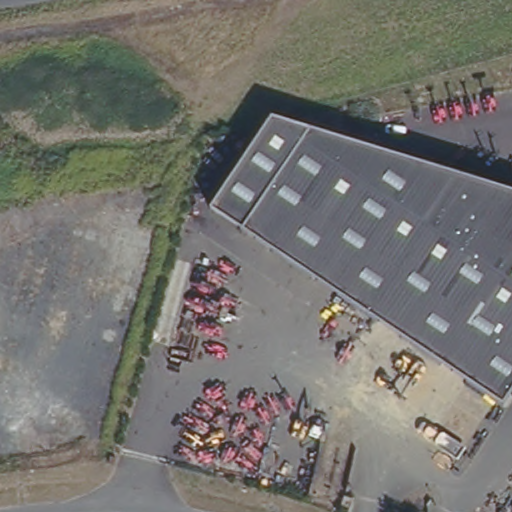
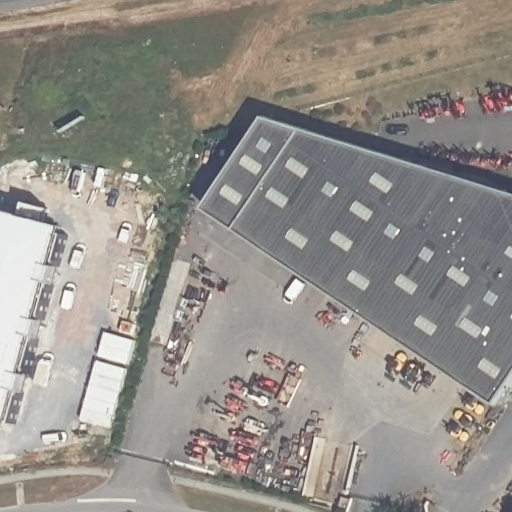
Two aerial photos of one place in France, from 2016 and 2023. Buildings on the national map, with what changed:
unchanged [(512,194),(512,393),(500,410),(208,215),(269,119),(512,194)]
new [(69,227),(18,431),(0,426),(0,217),(4,206),(69,227)]

